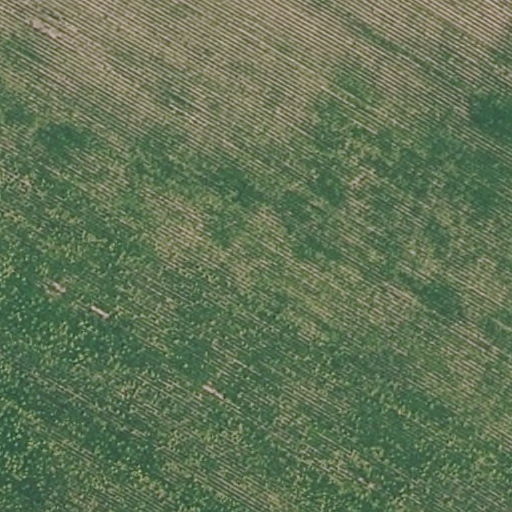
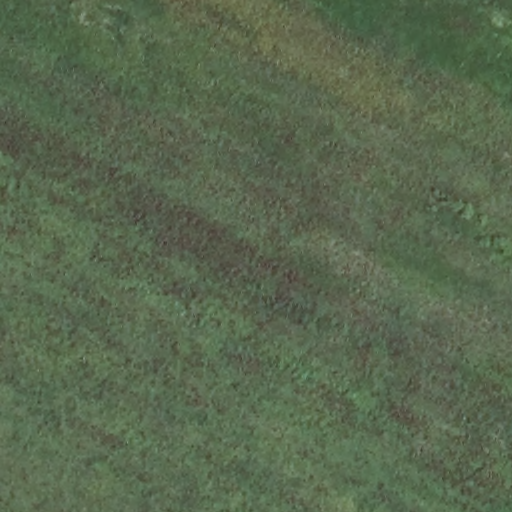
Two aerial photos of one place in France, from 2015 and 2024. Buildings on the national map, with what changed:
[]

